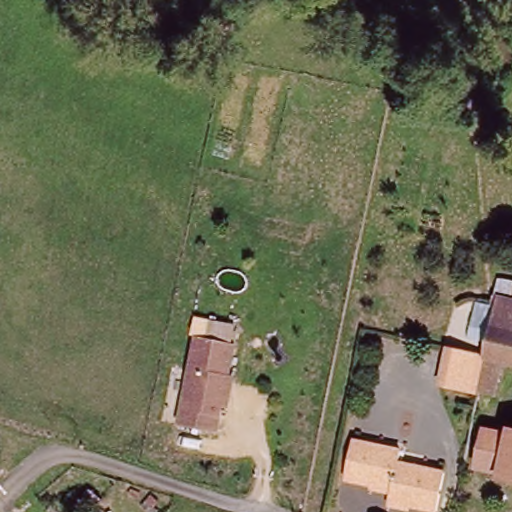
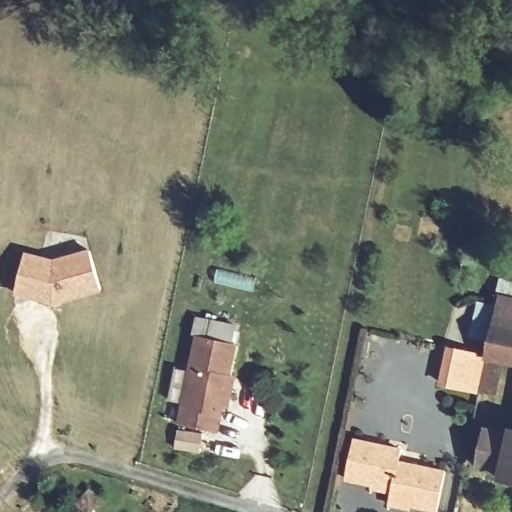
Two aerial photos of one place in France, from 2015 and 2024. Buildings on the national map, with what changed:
new [(14,296),(25,252),(53,259),(88,250),(101,292),(54,305),(14,296)]
unchanged [(475,395),(482,365),(490,322),(496,296),(512,299),(512,372),(501,369),(496,398),(475,395)]
unchanged [(211,320),(235,325),(233,343),(237,344),(227,388),(232,388),(230,407),(223,406),(218,433),(179,425),(198,335),(208,337),(211,320)]
unchanged [(464,391),(442,386),(447,355),(470,358),(464,391)]
unchanged [(502,476),(504,466),(480,458),(487,427),(511,432),(512,427),(512,478),(502,476)]
unchanged [(395,459),(440,470),(430,512),(428,512),(387,502),(390,489),(344,478),(353,438),(398,448),(395,459)]
unchanged [(81,507),(72,497),(90,480),(100,492),(81,507)]

